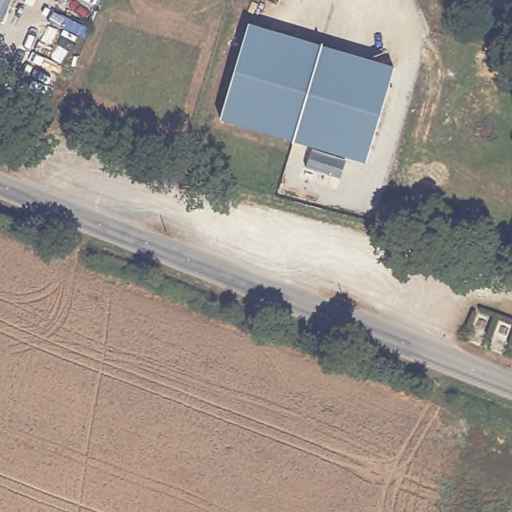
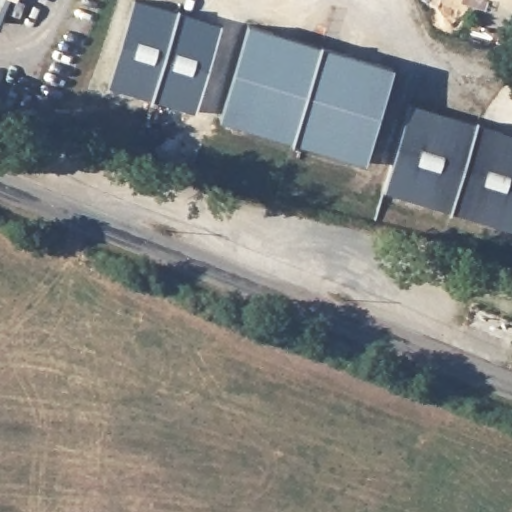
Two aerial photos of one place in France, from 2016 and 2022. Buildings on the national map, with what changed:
new [(133,0),(143,0),(224,23),(197,112),(109,86),(133,0)]
unchanged [(398,69),(370,163),(224,120),(252,26),(398,69)]
new [(512,132),(512,229),(383,192),(410,102),(512,132)]

